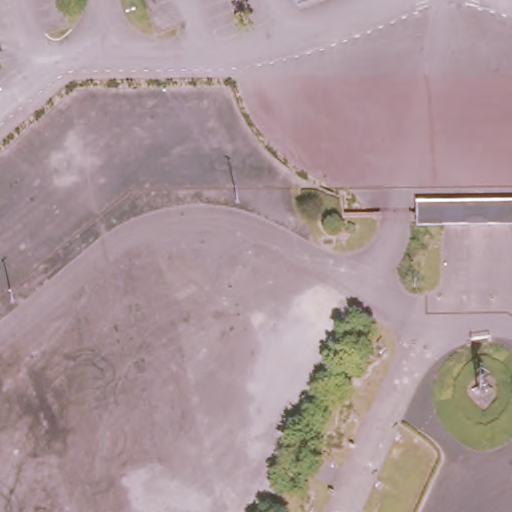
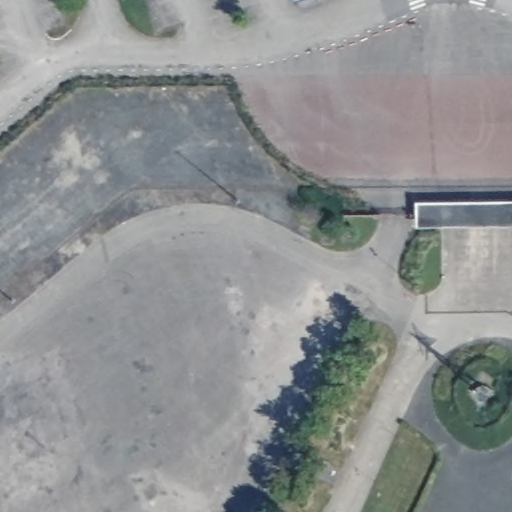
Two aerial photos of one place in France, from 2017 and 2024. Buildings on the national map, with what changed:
unchanged [(415,195),(512,192),(512,217),(415,219),(415,195)]

